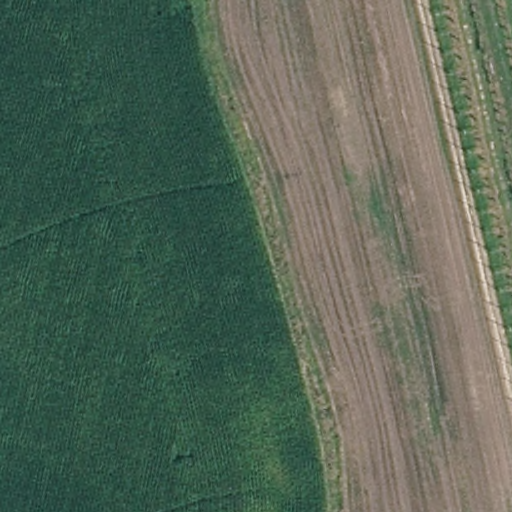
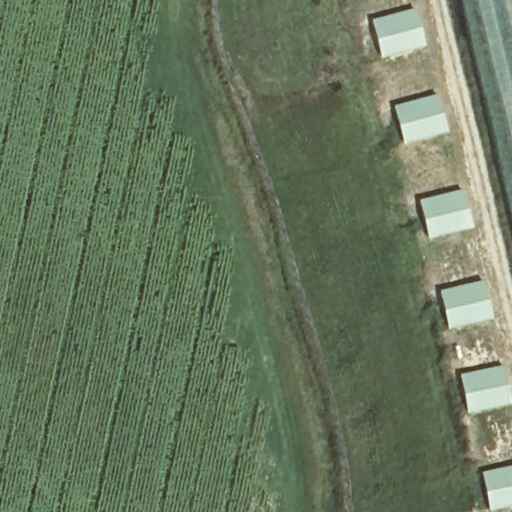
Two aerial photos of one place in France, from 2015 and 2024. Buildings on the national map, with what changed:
new [(417,6),(427,45),(381,57),(370,18),(417,6)]
new [(440,91),(450,131),(403,144),(393,104),(440,91)]
new [(466,187),(476,228),(428,239),(418,198),(466,187)]
new [(486,278),(495,318),(447,328),(438,288),(486,278)]
new [(506,363),(512,396),(512,404),(467,413),(459,372),(506,363)]
new [(512,464),(512,506),(489,510),(481,470),(512,464)]

